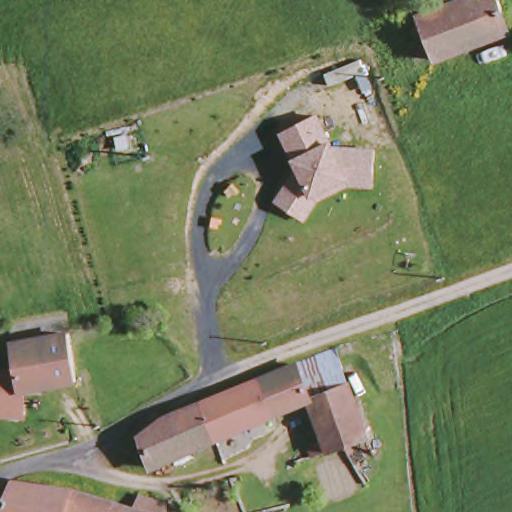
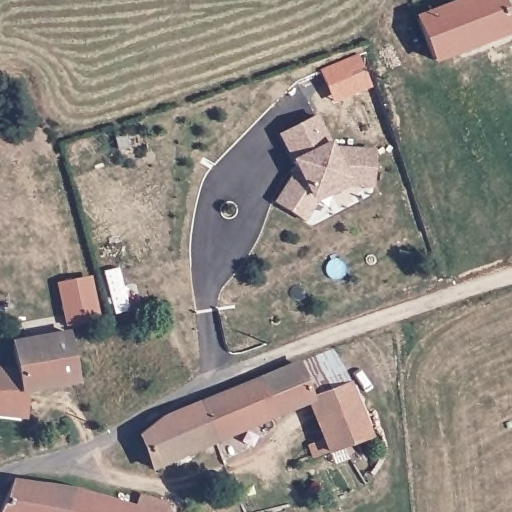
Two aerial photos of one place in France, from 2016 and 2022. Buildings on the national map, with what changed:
unchanged [(509,37),(406,72),(398,50),(420,42),(412,18),(464,0),(495,0),(509,37)]
unchanged [(275,205),(295,173),(279,137),(321,116),(334,146),(378,150),(375,190),(351,187),(319,204),(307,225),(275,205)]
new [(56,283),(92,277),(100,320),(65,327),(56,283)]
unchanged [(23,360),(24,346),(64,337),(72,384),(17,394),(14,374),(23,360)]
unchanged [(362,436),(319,453),(299,405),(211,443),(196,403),(333,349),(362,436)]
unchanged [(14,415),(0,414),(0,374),(14,374),(17,394),(14,415)]
unchanged [(211,443),(167,462),(148,469),(134,435),(154,421),(196,403),(211,443)]
unchanged [(15,483),(132,511),(135,512),(7,512),(11,493),(15,483)]
unchanged [(11,493),(7,512),(0,512),(0,493),(2,491),(11,493)]

